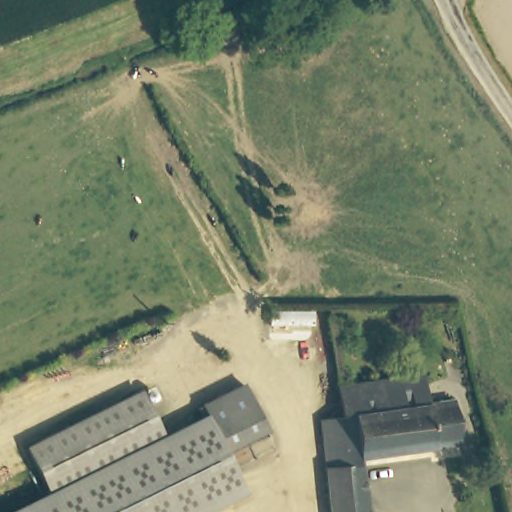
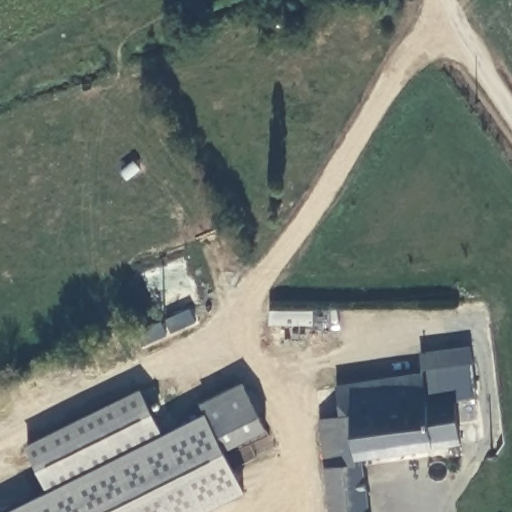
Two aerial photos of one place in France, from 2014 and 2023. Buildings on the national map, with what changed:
new [(472,362),(468,363),(474,398),(453,402),(433,405),(427,406),(421,376),(419,352),(470,346),(472,362)]
unchanged [(325,422),(338,420),(335,390),(368,384),(421,376),(427,406),(433,405),(453,402),(460,444),(359,457),(366,512),(328,512),(317,423),(325,422)]
unchanged [(262,427),(220,452),(201,415),(197,410),(240,386),(262,427)]
unchanged [(22,451),(137,395),(159,437),(46,495),(22,451)]
unchanged [(159,437),(201,415),(220,452),(237,487),(239,490),(224,498),(196,512),(12,512),(46,495),(159,437)]

